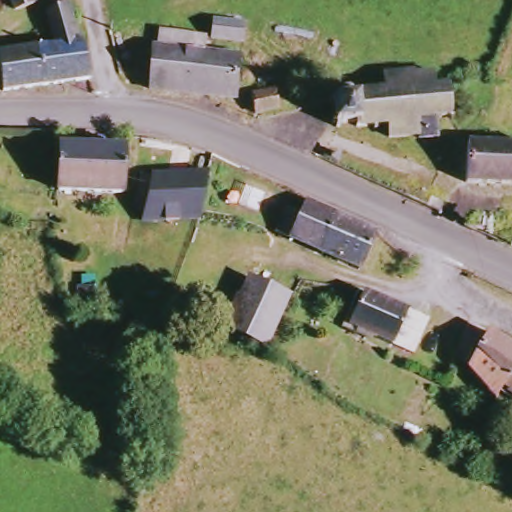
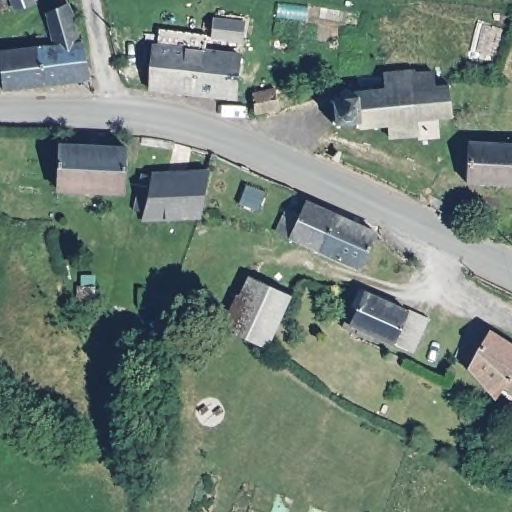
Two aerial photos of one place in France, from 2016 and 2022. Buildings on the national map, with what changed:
unchanged [(0,4),(0,0),(12,0),(0,4)]
unchanged [(18,16),(12,0),(35,0),(38,9),(26,13),(18,16)]
unchanged [(67,10),(81,47),(85,47),(92,84),(5,95),(1,57),(41,52),(59,50),(47,17),(67,9),(67,10)]
unchanged [(162,47),(164,31),(187,32),(187,50),(248,56),(243,97),(242,97),(155,90),(158,47),(162,47)]
unchanged [(332,99),(334,98),(335,95),(338,95),(340,98),(341,97),(341,92),(345,90),(352,89),(356,91),(360,97),(361,97),(361,92),(376,91),(376,87),(380,87),(381,91),(391,90),(390,72),(423,69),(424,72),(441,71),(442,85),(456,82),(456,86),(455,87),(456,110),(461,112),(459,117),(453,115),(446,116),(447,135),(428,137),(427,134),(397,137),(395,122),(385,124),(383,126),(380,126),(380,124),(360,126),(359,122),(343,123),(343,126),(339,126),(338,124),(336,124),(335,101),(331,102),(332,99)]
unchanged [(281,95),(285,114),(258,119),(253,100),(281,95)]
unchanged [(131,148),(130,194),(63,192),(66,145),(131,148)]
unchanged [(468,186),(470,146),(512,148),(512,188),(468,186)]
unchanged [(140,211),(146,176),(158,178),(159,175),(215,171),(207,218),(150,222),(151,213),(140,211)]
unchanged [(285,232),(295,207),(309,212),(315,200),(385,231),(367,270),(285,232)]
unchanged [(78,310),(82,278),(97,281),(94,312),(78,310)]
unchanged [(223,330),(227,320),(231,310),(241,313),(255,282),(297,301),(277,351),(223,330)]
unchanged [(353,330),(366,296),(409,313),(410,312),(429,321),(415,356),(353,330)]
unchanged [(507,386),(500,398),(475,367),(485,348),(496,330),(498,331),(512,340),(512,389),(507,386)]

